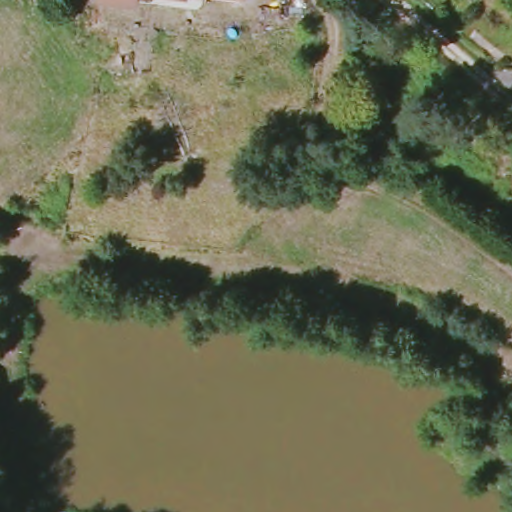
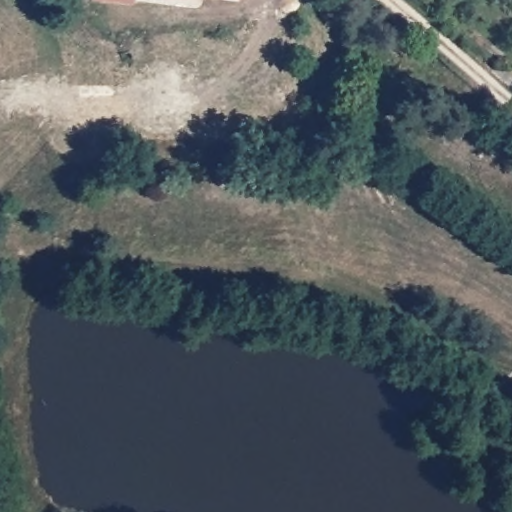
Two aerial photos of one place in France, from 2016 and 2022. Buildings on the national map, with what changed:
unchanged [(131,7),(95,3),(95,0),(132,0),(131,7)]
unchanged [(182,1),(171,0),(182,0),(182,1)]
unchanged [(240,2),(224,0),(240,0),(240,2)]

